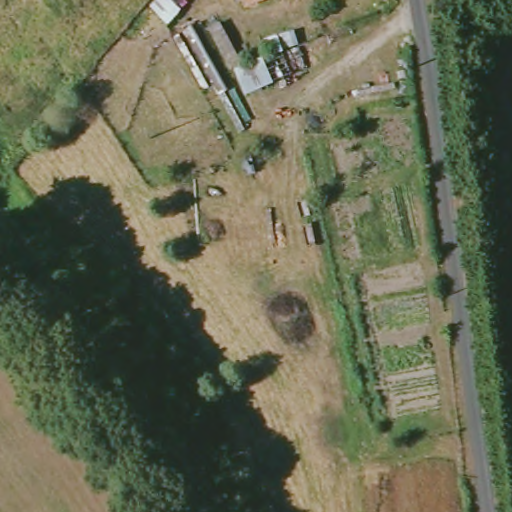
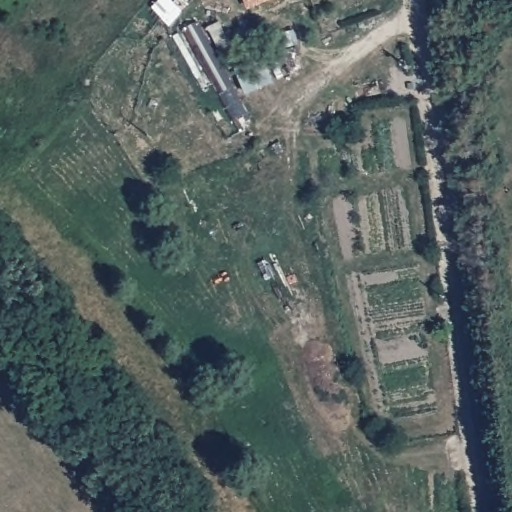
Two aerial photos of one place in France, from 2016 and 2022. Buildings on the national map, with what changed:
unchanged [(241,1),(240,0),(242,0),(241,1)]

